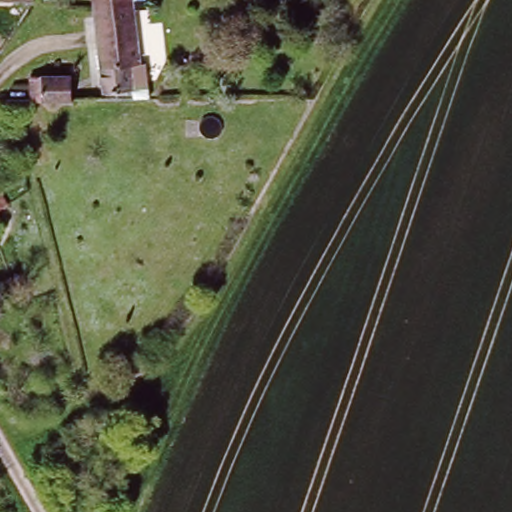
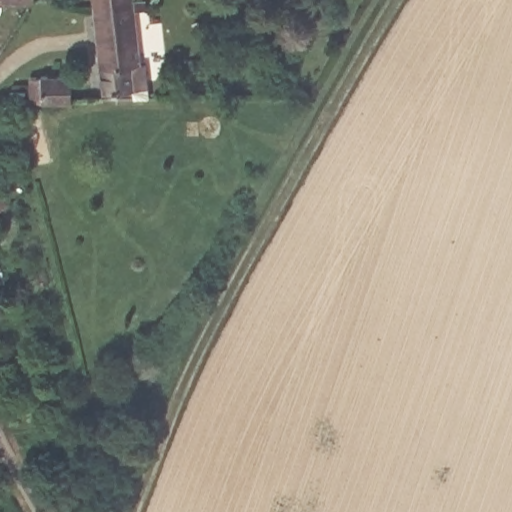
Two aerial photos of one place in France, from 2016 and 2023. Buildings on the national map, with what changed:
unchanged [(89,1),(89,0),(103,0),(89,1)]
unchanged [(149,96),(132,96),(131,87),(100,90),(89,1),(103,0),(145,0),(146,8),(132,9),(137,64),(146,64),(149,96)]
unchanged [(17,17),(23,22),(0,59),(0,43),(17,17)]
unchanged [(69,80),(70,102),(28,103),(28,81),(69,80)]

